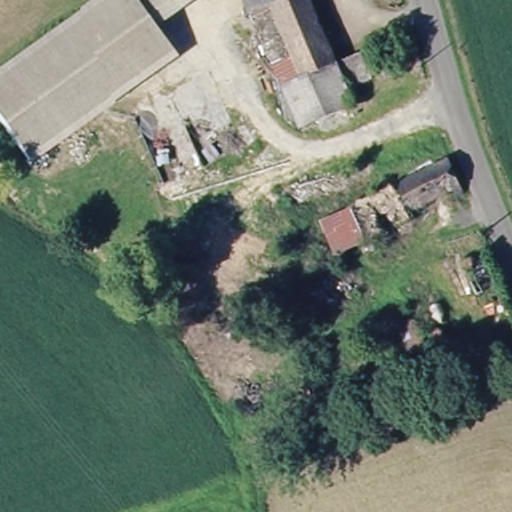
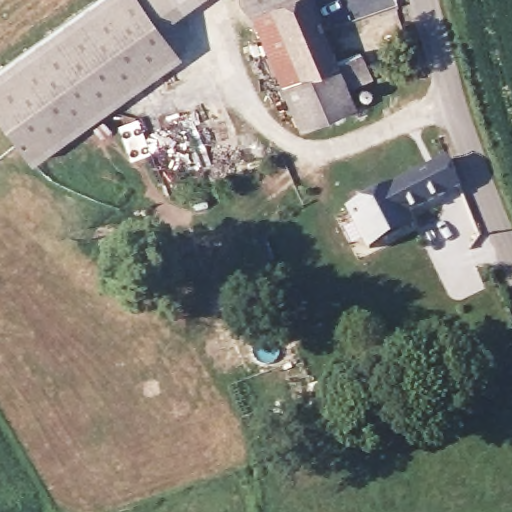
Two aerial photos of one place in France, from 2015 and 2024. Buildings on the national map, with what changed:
unchanged [(178,59),(26,161),(0,122),(0,66),(98,0),(180,0),(151,19),(178,59)]
unchanged [(363,53),(374,82),(351,94),(354,106),(299,125),(246,0),(309,0),(336,64),(363,53)]
unchanged [(367,253),(364,247),(351,215),(445,159),(461,192),(452,195),(450,191),(406,216),(408,222),(411,227),(367,253)]

